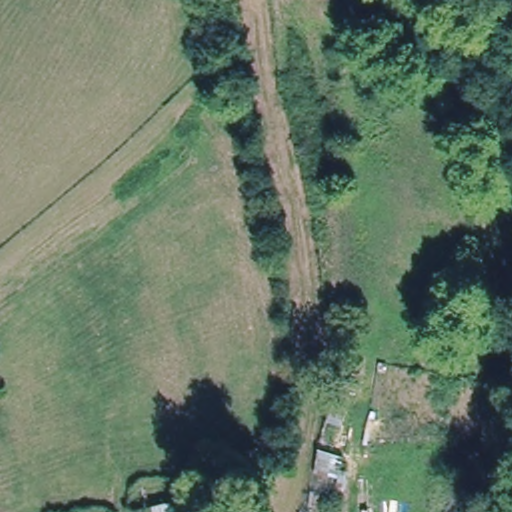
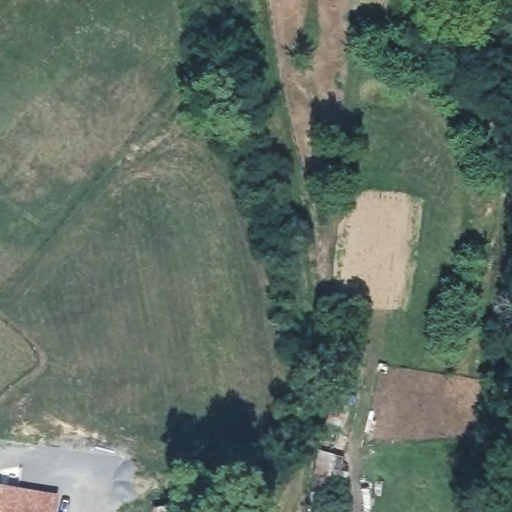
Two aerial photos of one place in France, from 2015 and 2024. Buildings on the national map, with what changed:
new [(64,497),(61,512),(0,512),(0,483),(64,497)]
unchanged [(195,512),(130,512),(129,511),(156,508),(194,505),(195,512)]

